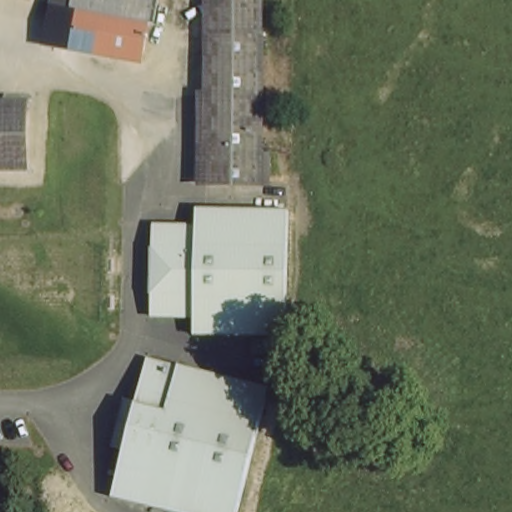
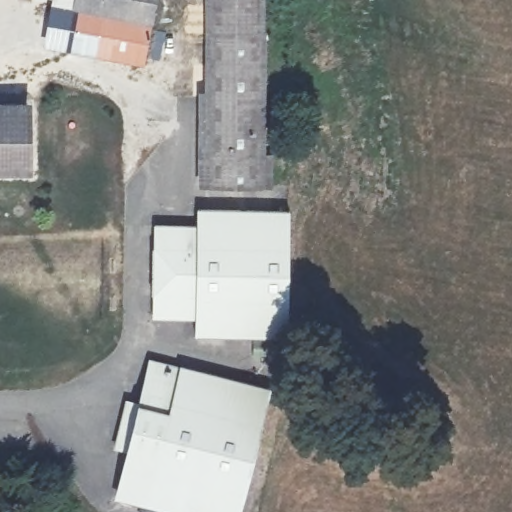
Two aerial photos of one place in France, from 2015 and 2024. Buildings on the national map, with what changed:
unchanged [(63,0),(76,0),(75,2),(63,0)]
unchanged [(76,0),(152,0),(138,65),(65,51),(75,2),(76,0)]
unchanged [(268,189),(204,187),(205,0),(258,0),(258,159),(269,159),(269,179),(268,189)]
unchanged [(28,106),(29,170),(0,171),(0,106),(28,106)]
unchanged [(286,343),(192,341),(192,325),(149,323),(150,231),(193,231),(193,215),(288,214),(286,343)]
unchanged [(127,454),(110,448),(116,419),(120,400),(137,402),(147,361),(268,391),(236,512),(176,512),(145,505),(156,460),(127,454)]
unchanged [(116,497),(127,454),(156,460),(145,505),(116,497)]

